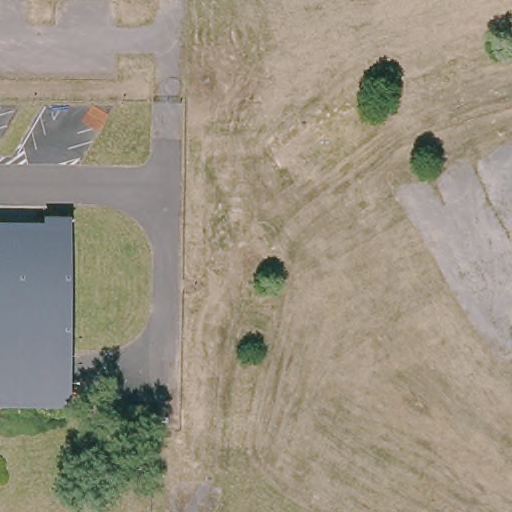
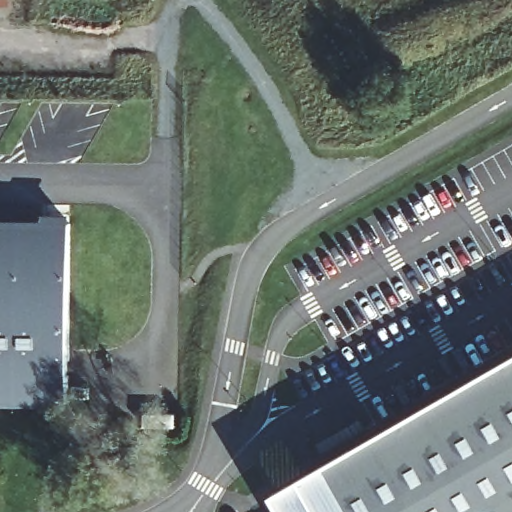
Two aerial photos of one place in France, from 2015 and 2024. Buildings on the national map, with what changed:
unchanged [(75,345),(75,397),(0,396),(0,218),(75,219),(75,345)]
new [(287,512),(275,491),(512,352),(512,512),(287,512)]

